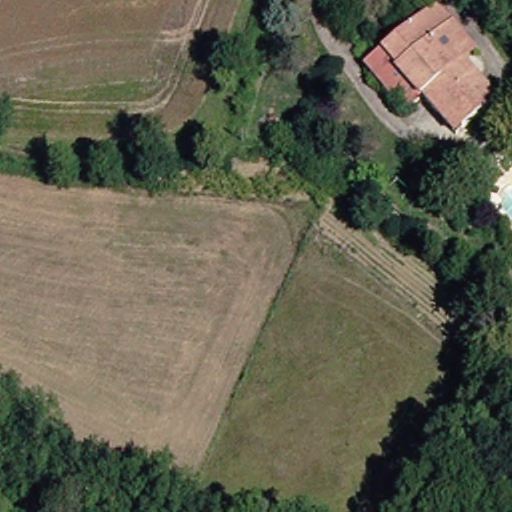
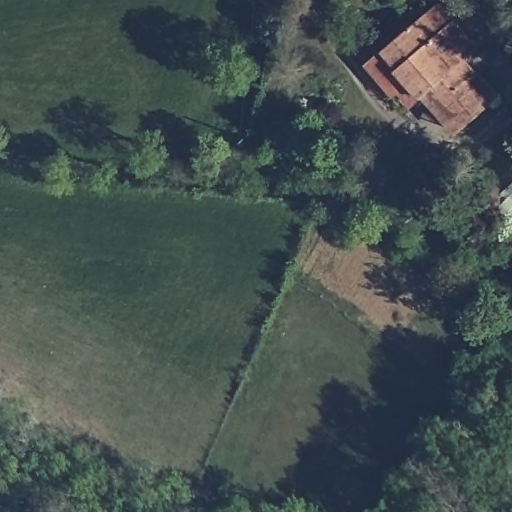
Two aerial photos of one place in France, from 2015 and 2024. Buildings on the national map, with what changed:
unchanged [(463,134),(430,93),(410,110),(373,62),(436,10),(443,4),(456,20),(476,45),(482,52),(473,59),(484,74),(503,100),(495,106),(463,134)]

